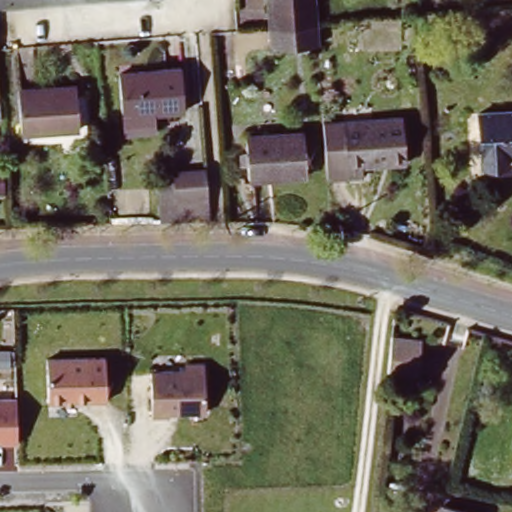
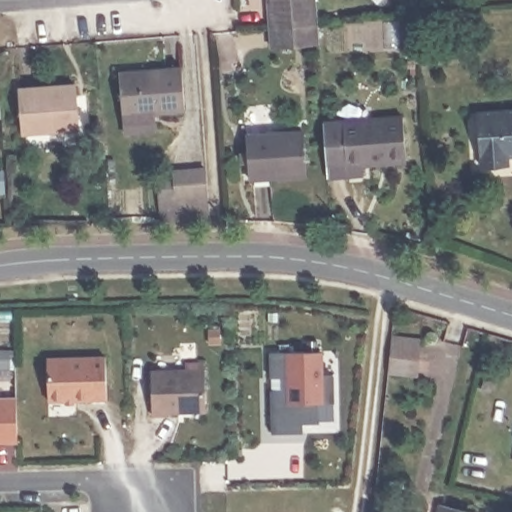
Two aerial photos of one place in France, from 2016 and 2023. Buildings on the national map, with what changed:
unchanged [(322,47),(269,47),(265,0),(318,0),(322,47)]
unchanged [(150,116),(121,119),(116,68),(178,62),(182,102),(149,106),(150,116)]
unchanged [(77,129),(18,132),(16,88),(74,85),(77,129)]
unchanged [(0,116),(0,98),(9,97),(10,115),(0,116)]
unchanged [(505,164),(478,166),(472,111),(512,107),(512,153),(504,154),(505,164)]
unchanged [(362,174),(325,177),(320,121),(408,114),(411,159),(391,161),(390,154),(361,156),(362,174)]
unchanged [(304,127),(308,176),(250,181),(245,132),(304,127)]
unchanged [(176,221),(175,174),(203,172),(207,220),(176,221)]
new [(322,353),(323,377),(331,377),(333,422),(301,423),(302,435),(270,436),(268,354),(322,353)]
unchanged [(107,355),(107,400),(49,402),(47,357),(107,355)]
unchanged [(393,360),(422,363),(420,378),(391,375),(393,360)]
unchanged [(184,361),(204,361),(206,412),(170,413),(170,416),(152,416),(151,368),(185,367),(184,361)]
unchanged [(18,442),(0,443),(0,396),(17,396),(18,442)]
unchanged [(477,512),(436,512),(439,502),(477,512)]

